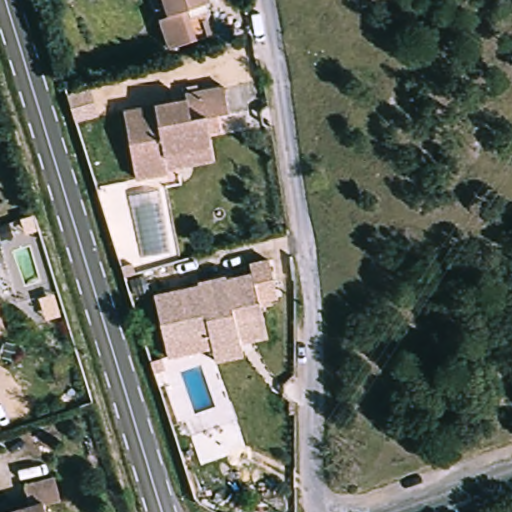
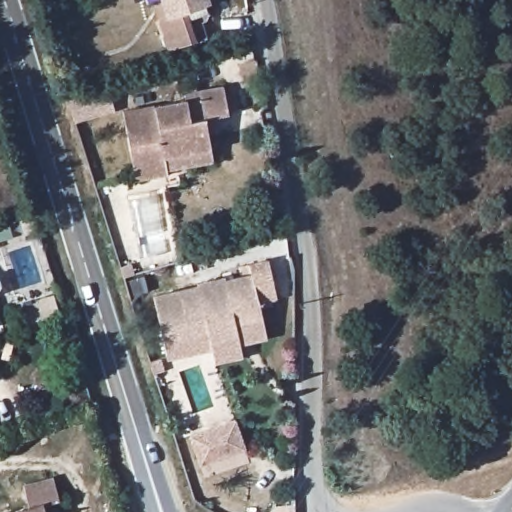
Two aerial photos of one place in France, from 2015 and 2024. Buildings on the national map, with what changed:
unchanged [(158,1),(158,0),(209,0),(210,4),(196,9),(206,37),(162,54),(147,6),(158,1)]
unchanged [(164,169),(166,174),(137,182),(118,113),(172,99),(170,89),(213,77),(223,115),(195,122),(201,145),(205,158),(164,169)]
unchanged [(274,302),(259,305),(266,337),(241,344),(243,357),(215,362),(212,351),(167,361),(153,295),(197,285),(197,282),(226,276),(226,279),(252,273),(249,262),(267,258),(274,302)]
new [(199,467),(186,436),(233,418),(245,451),(199,467)]
unchanged [(22,509),(17,487),(47,479),(52,500),(38,504),(41,512),(11,512),(22,509)]

